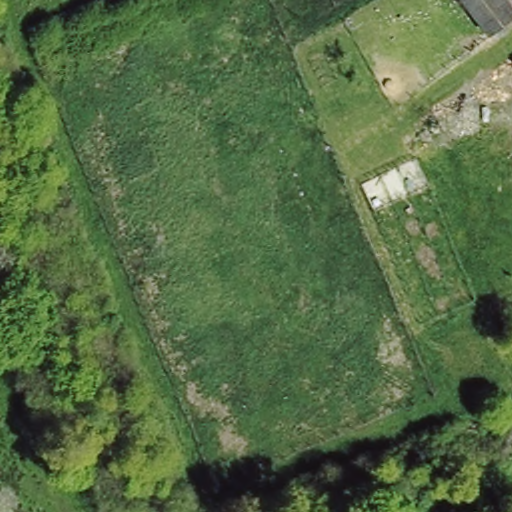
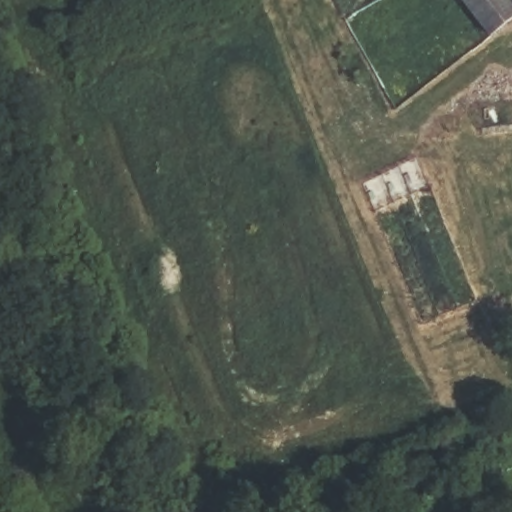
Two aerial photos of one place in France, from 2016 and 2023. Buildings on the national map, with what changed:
unchanged [(475,0),(512,0),(512,11),(494,24),(475,0)]

